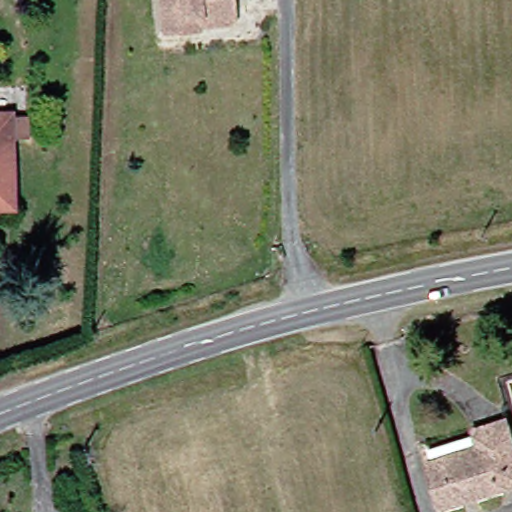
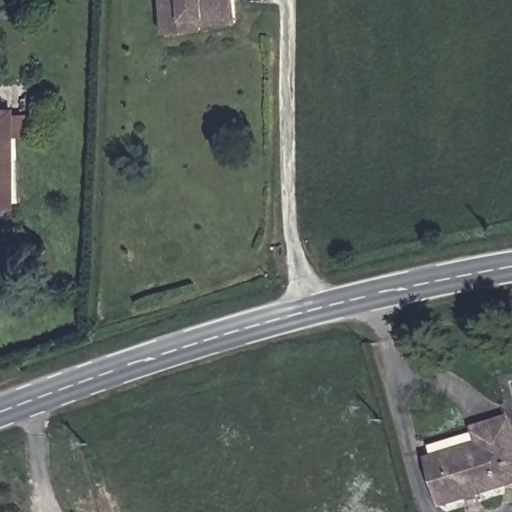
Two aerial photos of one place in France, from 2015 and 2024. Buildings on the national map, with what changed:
unchanged [(183,30),(150,32),(150,0),(225,0),(226,11),(226,22),(183,30)]
unchanged [(1,94),(19,91),(22,112),(0,116),(0,93),(1,94)]
unchanged [(0,208),(0,116),(13,191),(16,205),(0,208)]
unchanged [(512,476),(435,497),(424,452),(479,437),(476,426),(501,418),(512,459),(512,476)]

